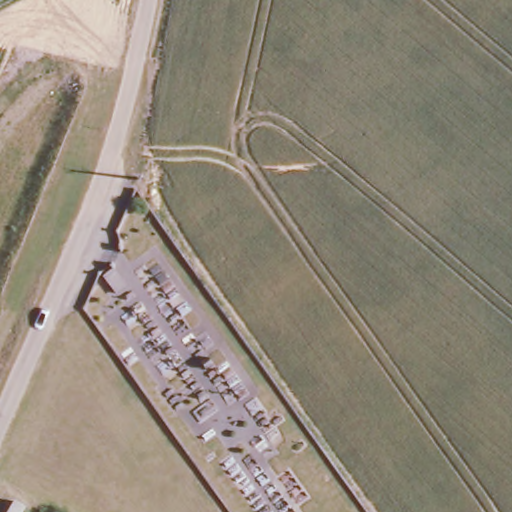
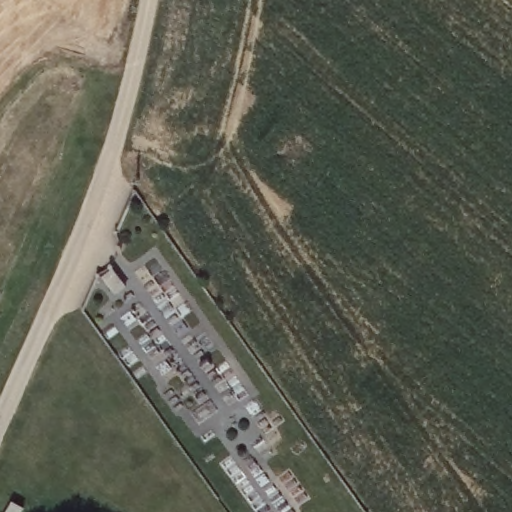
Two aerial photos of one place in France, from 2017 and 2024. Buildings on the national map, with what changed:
unchanged [(112,299),(98,282),(108,273),(122,291),(112,299)]

